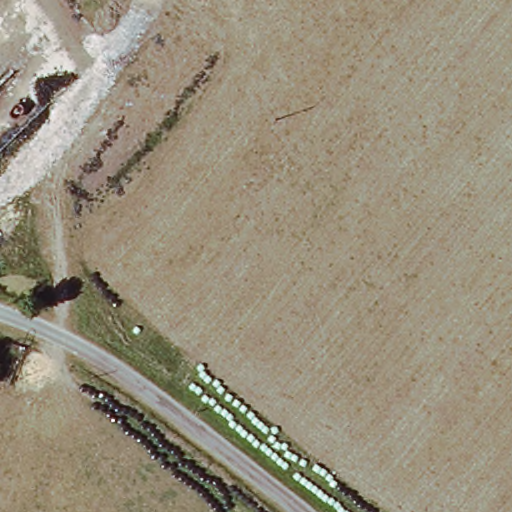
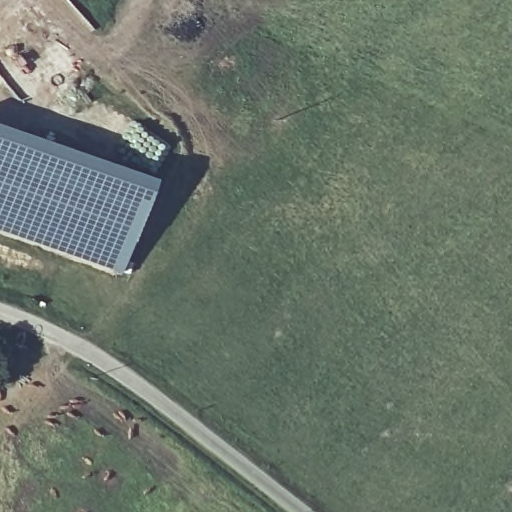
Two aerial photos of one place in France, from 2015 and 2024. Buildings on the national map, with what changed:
new [(152,179),(119,276),(0,234),(0,126),(152,179)]

